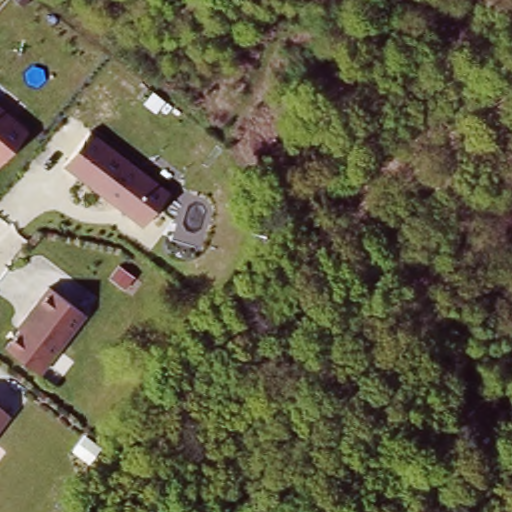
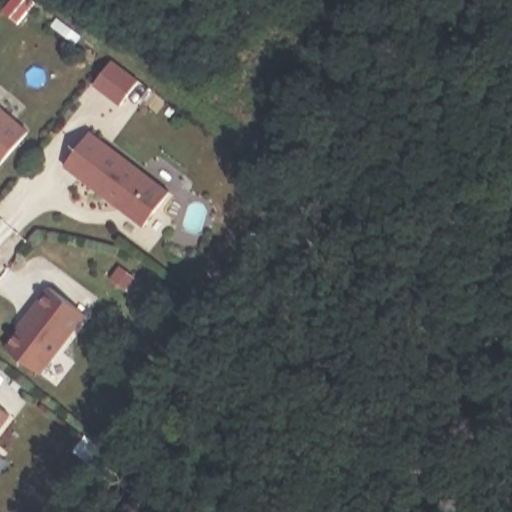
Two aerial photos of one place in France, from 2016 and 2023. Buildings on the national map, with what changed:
new [(32,0),(17,19),(1,6),(6,0),(32,0)]
new [(110,59),(137,80),(118,104),(92,84),(110,59)]
unchanged [(31,129),(0,166),(0,103),(31,129)]
unchanged [(90,128),(170,189),(143,225),(64,164),(90,128)]
unchanged [(87,313),(40,375),(0,348),(0,346),(48,283),(87,313)]
unchanged [(10,413),(0,428),(0,406),(10,413)]

